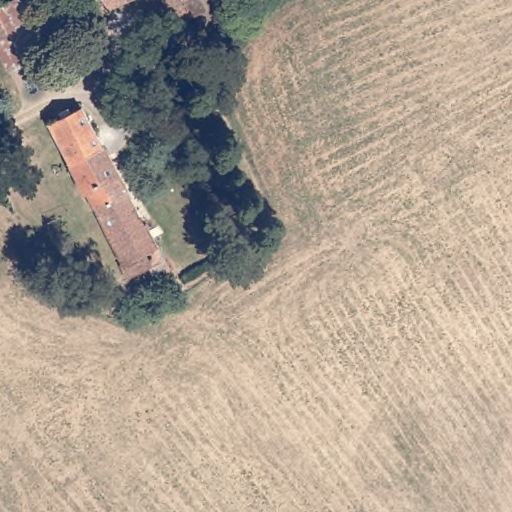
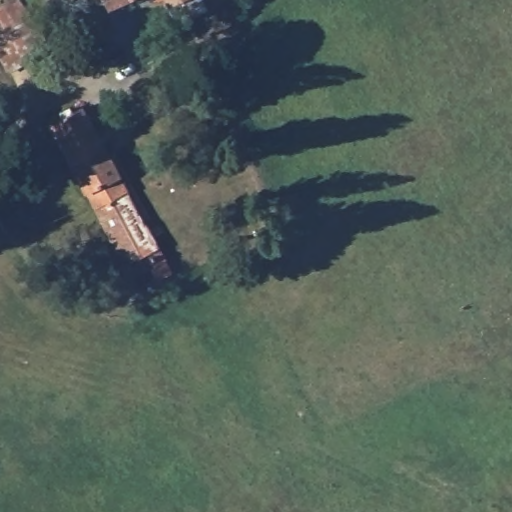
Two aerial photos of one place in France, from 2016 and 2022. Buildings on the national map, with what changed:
unchanged [(0,47),(0,7),(11,0),(28,0),(53,51),(14,75),(0,47)]
unchanged [(106,0),(118,0),(109,4),(106,0)]
unchanged [(203,9),(210,25),(184,37),(168,0),(205,0),(209,7),(203,9)]
unchanged [(84,103),(148,219),(177,269),(159,279),(150,264),(135,272),(51,119),(84,103)]

